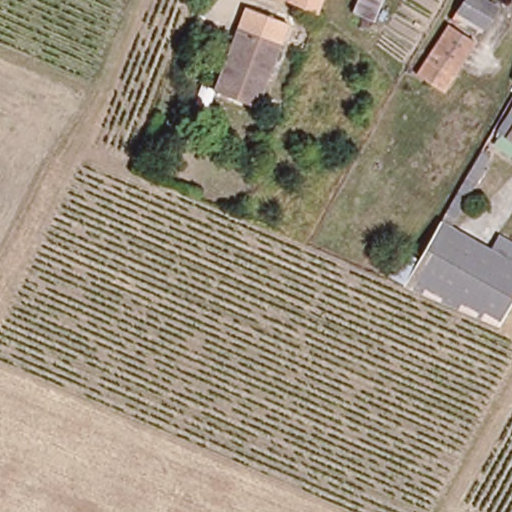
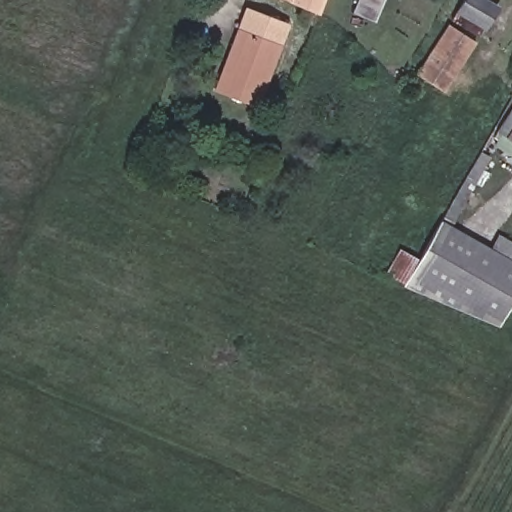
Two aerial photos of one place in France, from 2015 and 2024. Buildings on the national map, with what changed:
unchanged [(317,14),(290,3),(284,0),(322,0),(317,14)]
unchanged [(374,23),(349,14),(354,0),(384,0),(374,23)]
unchanged [(462,0),(484,0),(493,5),(478,34),(452,19),(462,0)]
unchanged [(443,93),(415,74),(445,26),(474,44),(443,93)]
unchanged [(253,107),(213,90),(239,29),(279,47),(253,107)]
unchanged [(506,143),(512,131),(512,147),(506,143)]
unchanged [(381,276),(396,247),(421,256),(441,220),(496,251),(505,235),(512,239),(512,299),(496,326),(381,276)]

